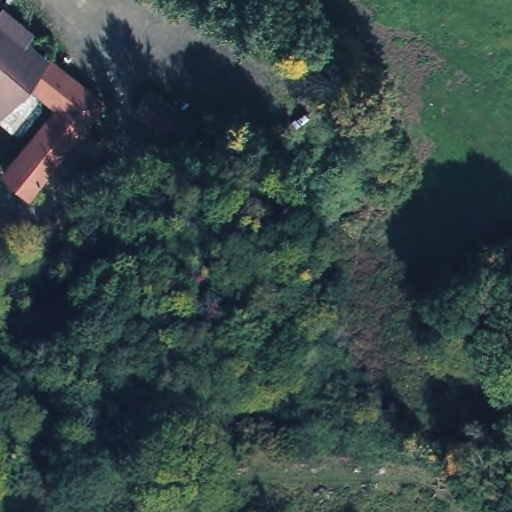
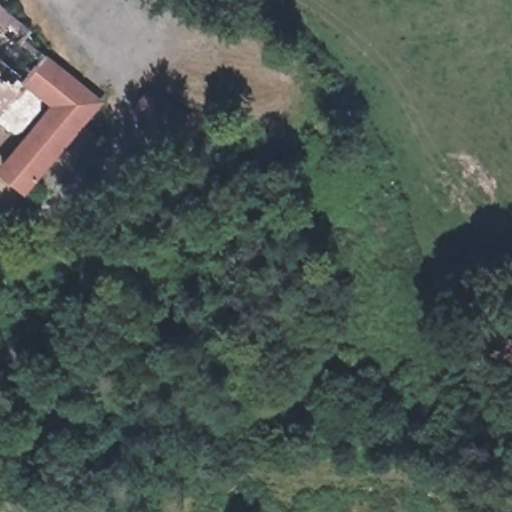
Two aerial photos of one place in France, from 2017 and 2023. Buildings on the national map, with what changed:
unchanged [(0,117),(0,2),(30,26),(22,35),(46,53),(99,99),(26,187),(4,167),(57,102),(49,94),(42,90),(35,99),(37,109),(18,132),(0,117)]
unchanged [(210,117),(190,155),(131,110),(152,82),(210,117)]

